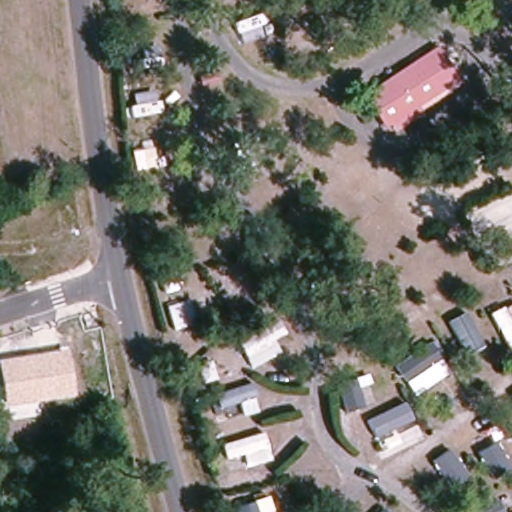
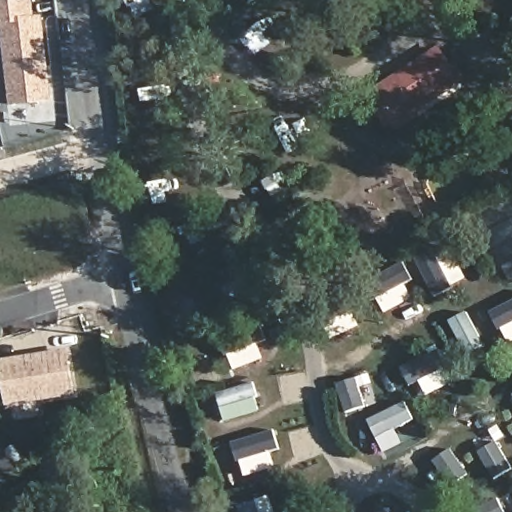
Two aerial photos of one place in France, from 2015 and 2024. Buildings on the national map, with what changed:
new [(0,26),(0,2),(23,0),(34,0),(35,17),(45,16),(53,102),(7,105),(0,26)]
unchanged [(441,47),(461,78),(387,127),(366,95),(441,47)]
unchanged [(5,405),(0,369),(0,359),(70,349),(75,395),(5,405)]

